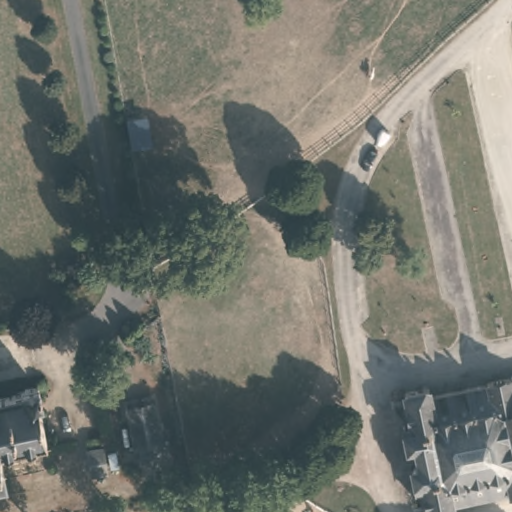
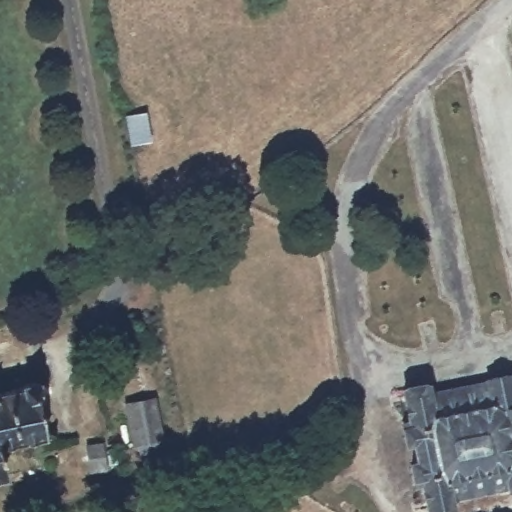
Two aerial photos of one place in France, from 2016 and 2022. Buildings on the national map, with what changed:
unchanged [(507,486),(454,496),(456,509),(438,512),(428,512),(427,509),(419,509),(418,499),(425,498),(421,476),(414,477),(412,459),(419,458),(415,443),(406,444),(403,424),(410,422),(406,405),(395,406),(395,395),(405,394),(405,382),(428,379),(430,388),(482,378),(482,372),(510,365),(512,370),(512,494),(509,495),(507,486)]
unchanged [(43,394),(35,394),(43,433),(4,443),(10,469),(3,479),(0,480),(0,389),(41,381),(43,394)]

